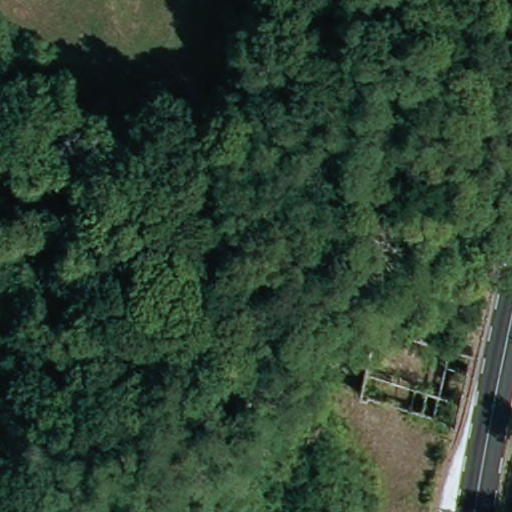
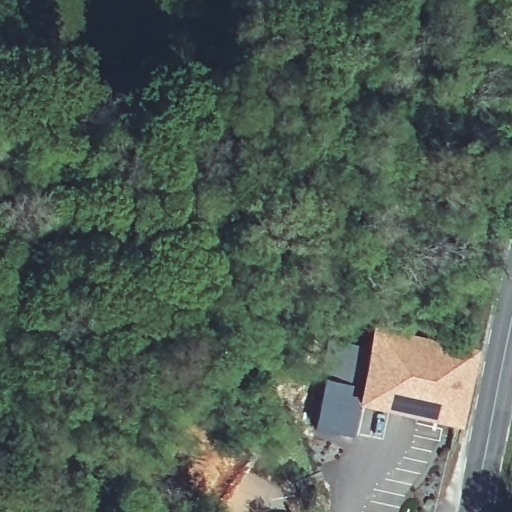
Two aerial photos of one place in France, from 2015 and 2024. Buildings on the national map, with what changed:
new [(374,331),(476,350),(458,428),(356,406),(374,331)]
new [(326,381),(346,384),(343,402),(356,406),(351,437),(316,429),(326,381)]

